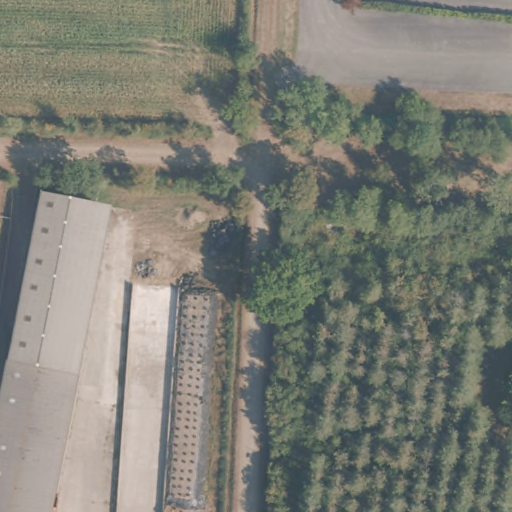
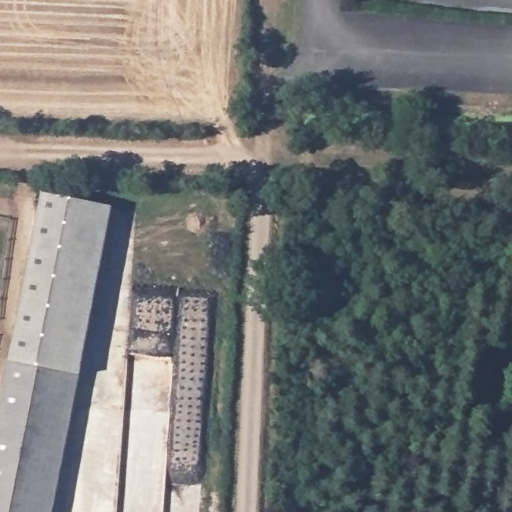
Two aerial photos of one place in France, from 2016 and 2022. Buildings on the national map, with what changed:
unchanged [(42,195),(112,210),(77,379),(6,365),(42,195)]
unchanged [(6,365),(77,379),(50,512),(0,512),(0,397),(6,365)]

